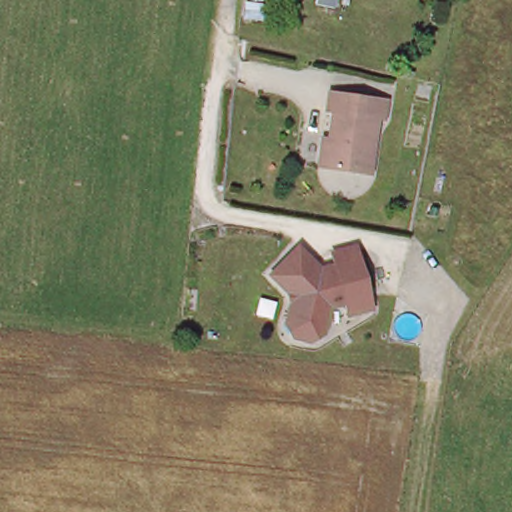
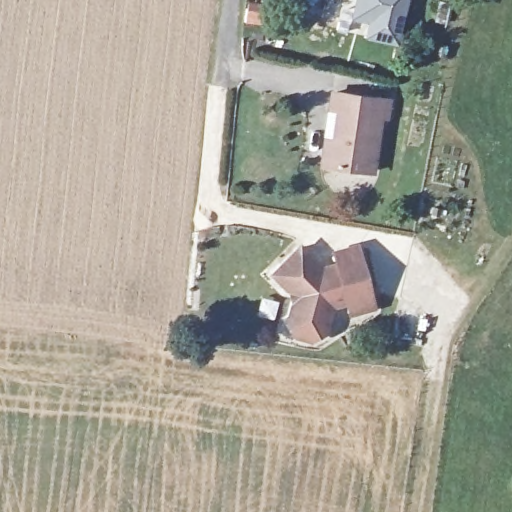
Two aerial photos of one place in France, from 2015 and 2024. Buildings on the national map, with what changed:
new [(354,0),(407,0),(397,45),(364,38),(367,22),(350,19),(354,0)]
unchanged [(332,104),(326,103),(329,85),(386,95),(382,113),(377,112),(367,167),(322,159),(315,158),(319,130),(327,132),(332,104)]
unchanged [(319,262),(334,258),(331,246),(355,240),(370,302),(346,307),(343,295),(328,299),(320,326),(309,333),(290,328),(284,316),(290,293),(294,292),(292,284),(289,285),(270,266),(298,240),(319,262)]

